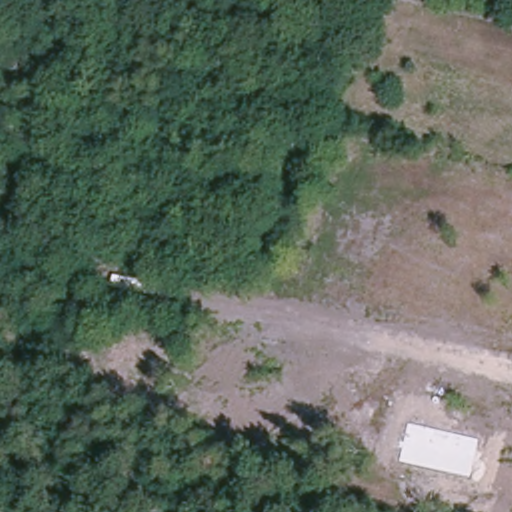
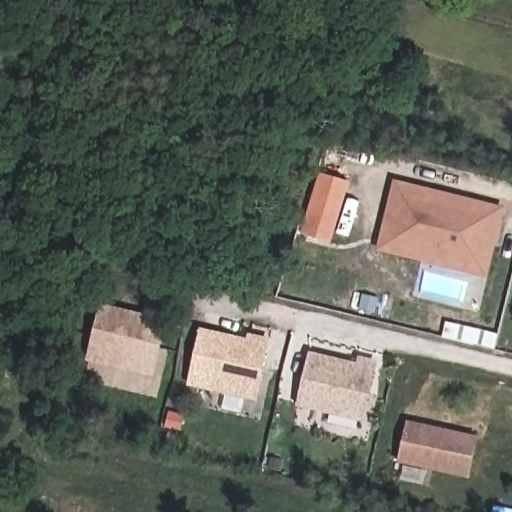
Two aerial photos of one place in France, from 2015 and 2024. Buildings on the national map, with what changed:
new [(322,175),(349,183),(332,239),(305,230),(322,175)]
new [(494,207),(478,272),(397,251),(413,186),(494,207)]
new [(102,305),(144,314),(154,281),(176,285),(170,314),(153,377),(86,361),(102,305)]
new [(200,329),(247,339),(248,334),(272,337),(258,402),(189,386),(200,329)]
new [(310,352),(356,363),(358,356),(379,361),(365,422),(299,407),(310,352)]
new [(407,421),(479,436),(469,479),(398,464),(407,421)]

